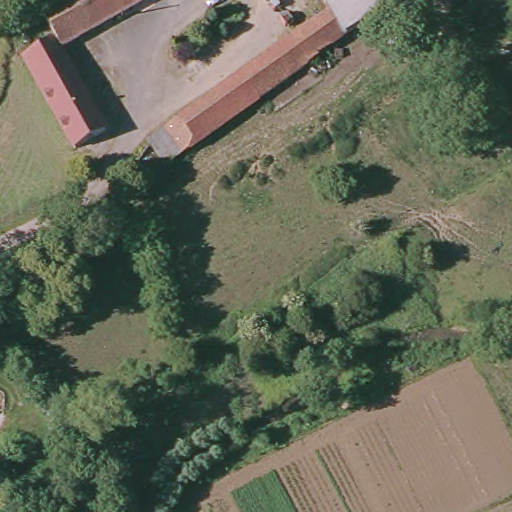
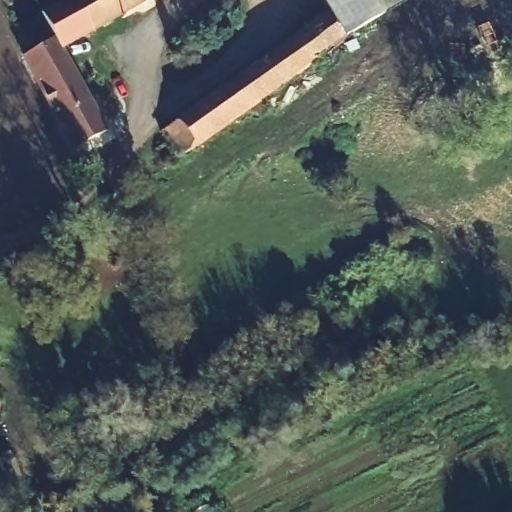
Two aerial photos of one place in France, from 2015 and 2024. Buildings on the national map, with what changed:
unchanged [(40,12),(53,4),(60,0),(147,0),(66,49),(102,141),(70,156),(53,117),(48,106),(28,56),(32,55),(55,42),(40,12)]
unchanged [(343,36),(327,11),(323,0),(375,0),(382,16),(343,36)]
unchanged [(382,16),(375,0),(420,0),(416,1),(382,16)]
unchanged [(150,155),(147,150),(327,11),(343,36),(147,187),(138,166),(150,155)]

